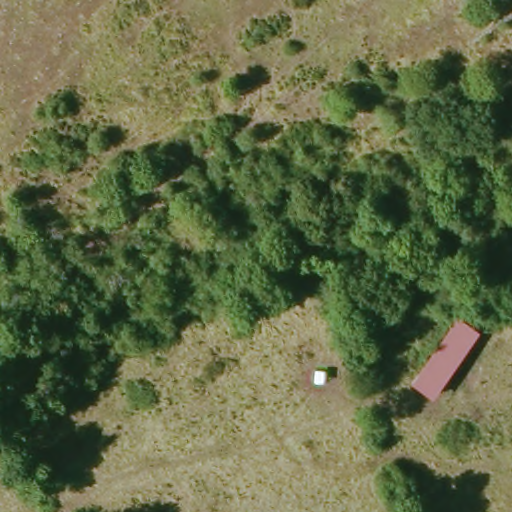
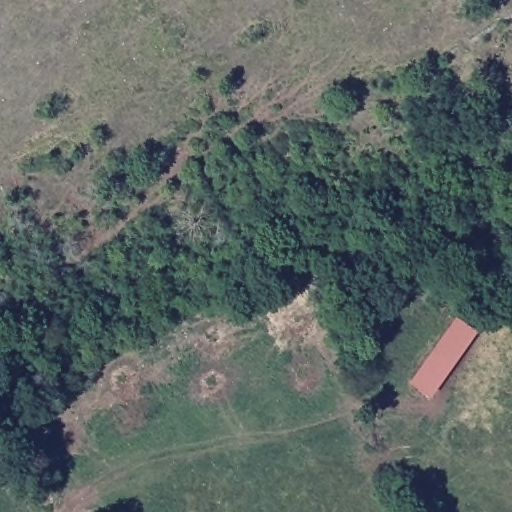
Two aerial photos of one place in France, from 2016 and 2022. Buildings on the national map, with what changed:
unchanged [(462,318),(485,335),(440,403),(415,386),(462,318)]

